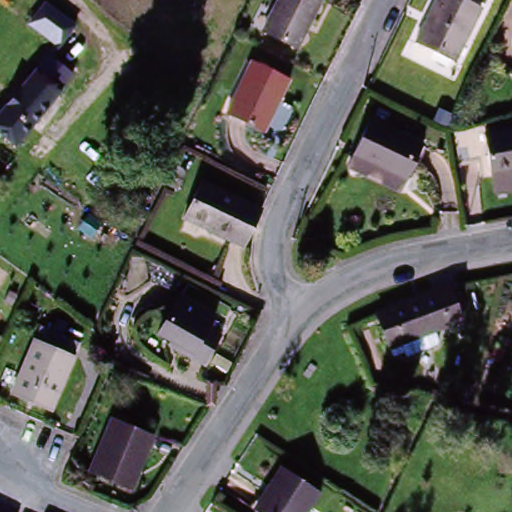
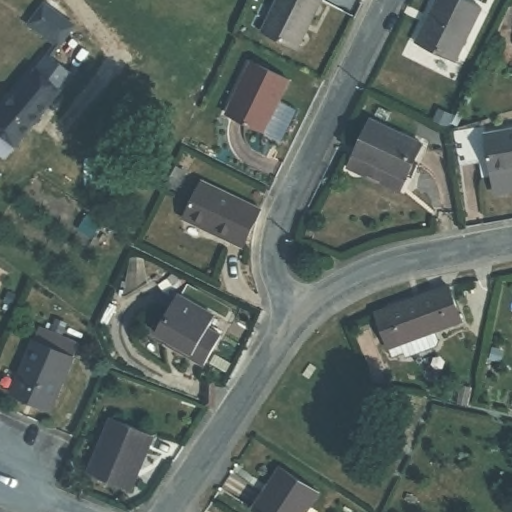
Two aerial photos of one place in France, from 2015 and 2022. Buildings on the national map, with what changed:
unchanged [(42,0),(70,23),(58,38),(30,15),(41,0),(42,0)]
unchanged [(261,36),(279,0),(313,0),(316,1),(292,51),(261,36)]
unchanged [(466,0),(482,9),(455,62),(417,43),(439,0),(466,0)]
unchanged [(46,51),(68,68),(11,139),(0,131),(0,107),(46,51)]
unchanged [(226,118),(251,66),(286,84),(260,136),(226,118)]
unchanged [(421,145),(402,182),(353,156),(372,120),(421,145)]
unchanged [(512,185),(497,188),(495,174),(488,132),(512,128),(512,185)]
unchanged [(488,132),(495,174),(484,176),(482,166),(463,169),(458,136),(488,132)]
unchanged [(184,215),(203,176),(264,207),(245,245),(184,215)]
unchanged [(380,308),(405,299),(443,286),(454,320),(391,340),(380,308)]
unchanged [(177,350),(180,345),(160,333),(180,294),(215,312),(210,323),(221,330),(204,364),(191,358),(177,350)]
unchanged [(35,345),(42,329),(78,346),(70,363),(46,412),(11,394),(35,345)]
unchanged [(150,439),(128,492),(85,474),(107,421),(150,439)]
unchanged [(277,467),(311,490),(297,512),(256,512),(250,508),(277,467)]

